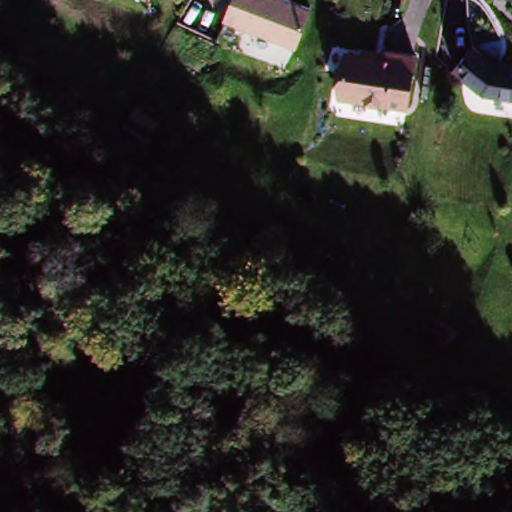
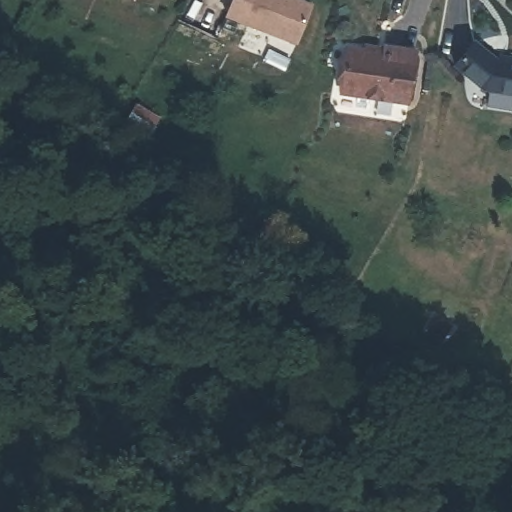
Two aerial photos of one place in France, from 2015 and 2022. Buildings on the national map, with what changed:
unchanged [(302,5),(294,45),(224,22),(229,0),(288,0),(302,5)]
unchanged [(405,103),(343,96),(345,50),(361,52),(362,44),(380,46),(408,51),(405,103)]
unchanged [(489,64),(497,65),(498,57),(512,60),(512,94),(478,92),(452,70),(467,47),(489,64)]

